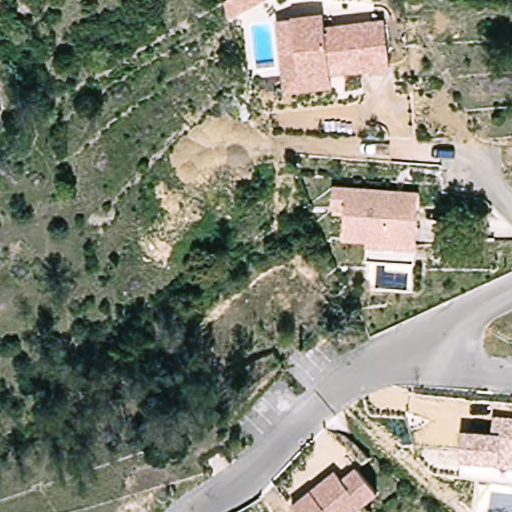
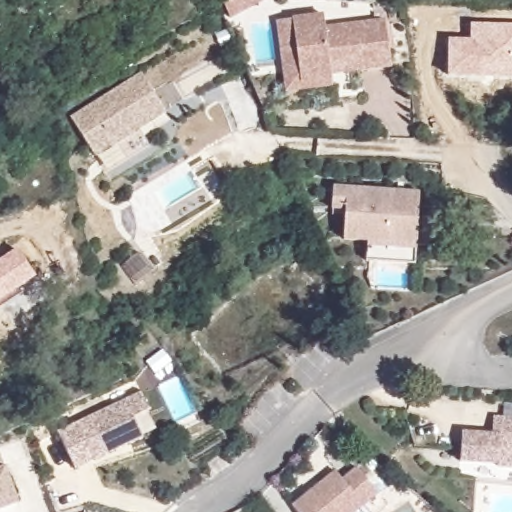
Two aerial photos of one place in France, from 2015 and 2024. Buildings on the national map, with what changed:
unchanged [(232,19),(224,2),(228,0),(266,0),(232,19)]
unchanged [(391,70),(332,77),(334,88),(285,93),(276,21),(325,14),(326,26),(384,18),(391,70)]
new [(449,76),(449,37),(470,37),(471,22),(512,24),(512,77),(449,76)]
new [(141,73),(166,114),(95,158),(71,117),(141,73)]
unchanged [(367,237),(343,236),(344,206),(330,205),(331,184),(391,187),(419,188),(418,208),(416,240),(415,259),(366,257),(367,237)]
new [(75,470),(57,434),(140,394),(148,411),(133,418),(142,437),(127,445),(117,450),(75,470)]
unchanged [(461,462),(462,432),(492,433),(493,416),(512,417),(512,466),(461,462)]
new [(0,510),(0,468),(14,505),(0,510)]
unchanged [(343,473),(348,482),(365,473),(380,502),(363,511),(364,512),(301,512),(294,499),(343,473)]

